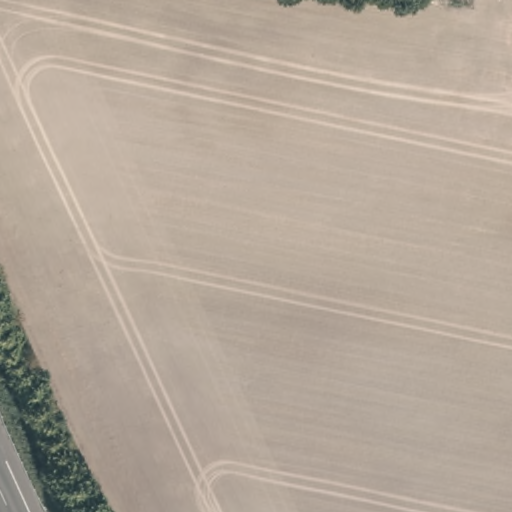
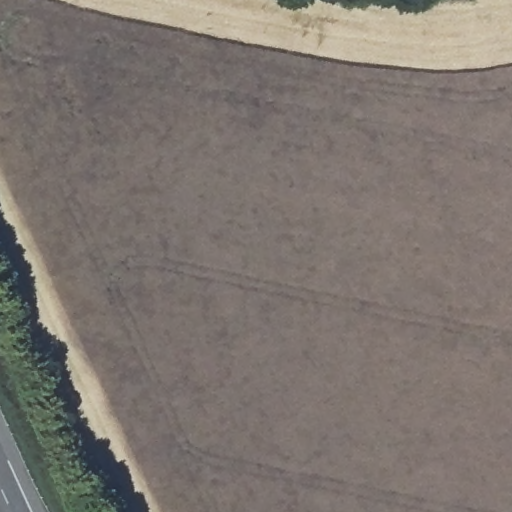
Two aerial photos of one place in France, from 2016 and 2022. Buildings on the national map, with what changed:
[]

